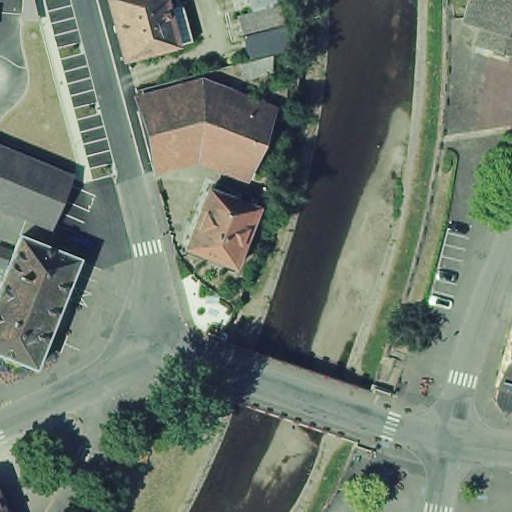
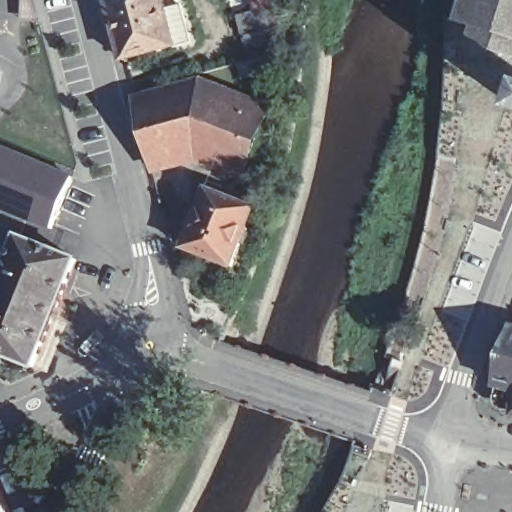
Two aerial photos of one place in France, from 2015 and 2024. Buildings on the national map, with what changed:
unchanged [(183,43),(168,46),(116,60),(100,0),(156,0),(158,9),(173,5),(183,43)]
unchanged [(236,12),(233,0),(275,0),(275,2),(283,22),(284,25),(280,26),(261,31),(265,45),(265,47),(235,55),(231,39),(242,36),(236,12)]
unchanged [(449,21),(456,0),(512,0),(512,48),(508,59),(460,44),(465,27),(449,21)]
unchanged [(193,85),(263,111),(245,159),(187,136),(142,149),(130,101),(193,85)]
unchanged [(40,233),(0,217),(0,158),(60,182),(40,233)]
unchanged [(200,190),(250,208),(228,270),(177,252),(200,190)]
unchanged [(38,332),(22,371),(0,362),(0,260),(7,241),(65,265),(50,304),(62,309),(50,337),(38,332)]
unchanged [(507,420),(507,418),(495,417),(485,402),(490,388),(488,387),(505,331),(512,333),(512,420),(507,420)]

